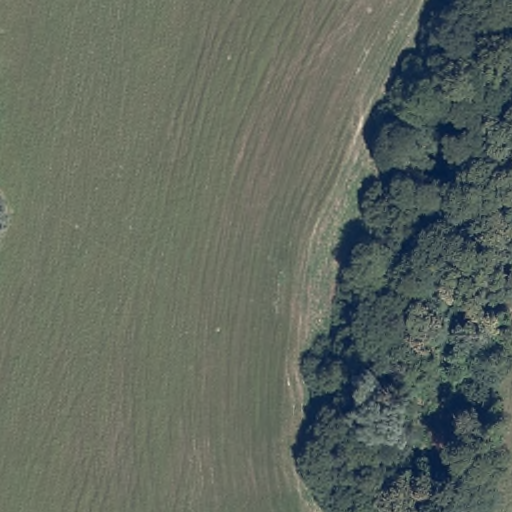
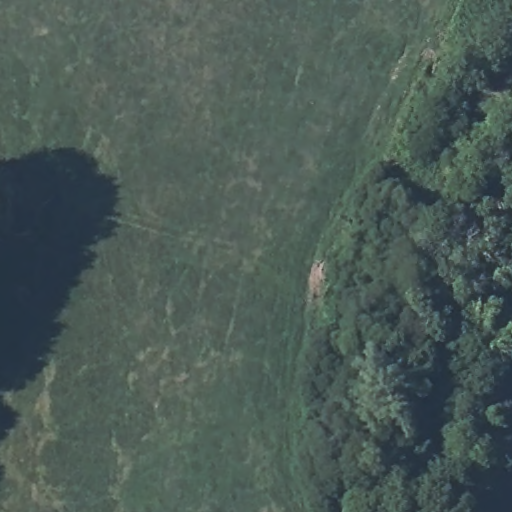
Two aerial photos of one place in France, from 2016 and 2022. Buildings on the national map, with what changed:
[]

